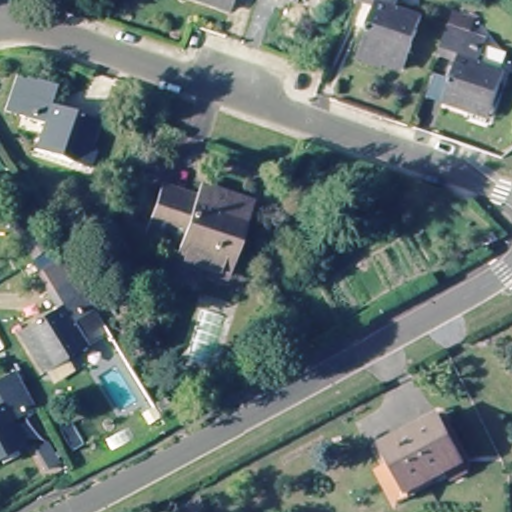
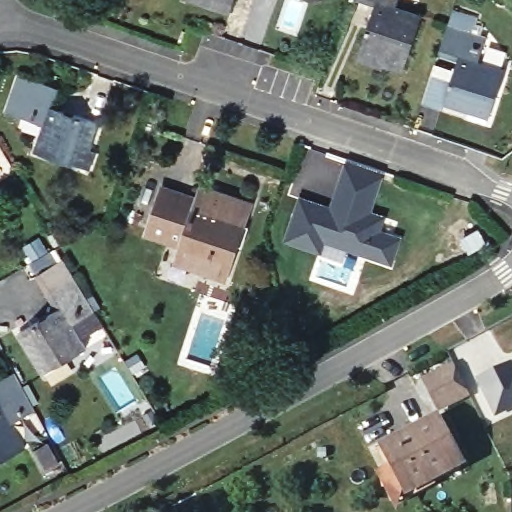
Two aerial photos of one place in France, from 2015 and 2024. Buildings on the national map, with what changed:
unchanged [(231,16),(186,0),(237,0),(231,16)]
unchanged [(363,41),(376,7),(357,1),(358,0),(400,0),(398,5),(425,15),(406,69),(381,60),(358,53),(363,41)]
unchanged [(467,112),(441,102),(457,57),(437,50),(447,20),(489,36),(479,63),(506,73),(493,106),(488,120),(467,112)]
unchanged [(68,163),(29,149),(37,126),(18,120),(32,73),(64,84),(58,105),(99,120),(91,145),(83,168),(68,163)]
new [(298,193),(329,204),(346,157),(386,172),(374,210),(387,214),(386,216),(393,219),(389,229),(403,234),(392,265),(347,250),(343,261),(282,239),(298,193)]
unchanged [(200,197),(207,180),(255,198),(226,276),(182,261),(186,250),(155,241),(173,188),(200,197)]
unchanged [(36,358),(20,328),(56,309),(34,272),(62,258),(89,305),(93,310),(72,319),(89,347),(61,363),(44,373),(36,358)]
new [(495,412),(478,377),(509,362),(512,367),(512,404),(495,412)]
unchanged [(38,408),(13,422),(28,449),(0,465),(0,382),(18,372),(38,408)]
unchanged [(437,413),(465,463),(411,490),(383,441),(437,413)]

